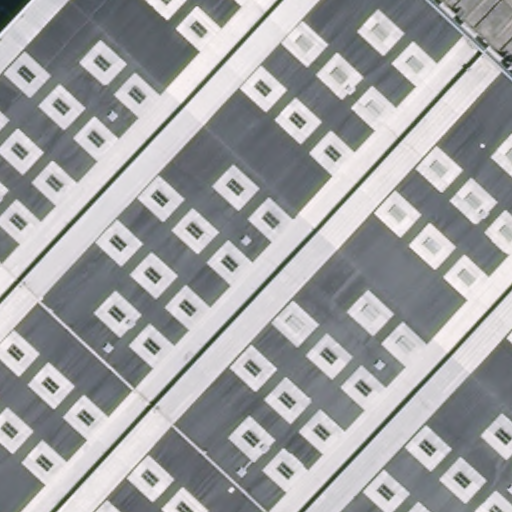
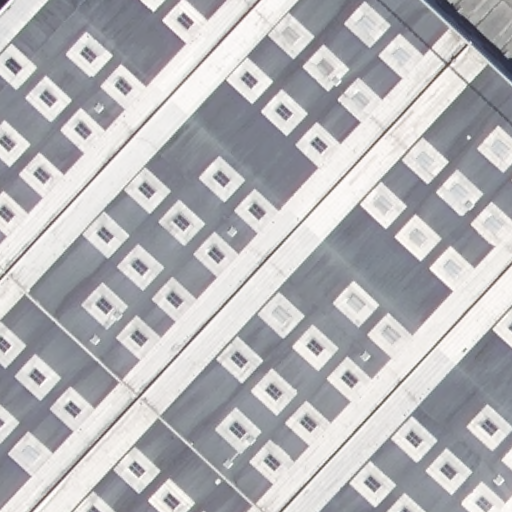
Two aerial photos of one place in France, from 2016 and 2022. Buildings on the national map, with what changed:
unchanged [(512,512),(0,512),(0,0),(429,0),(512,78),(512,512)]

